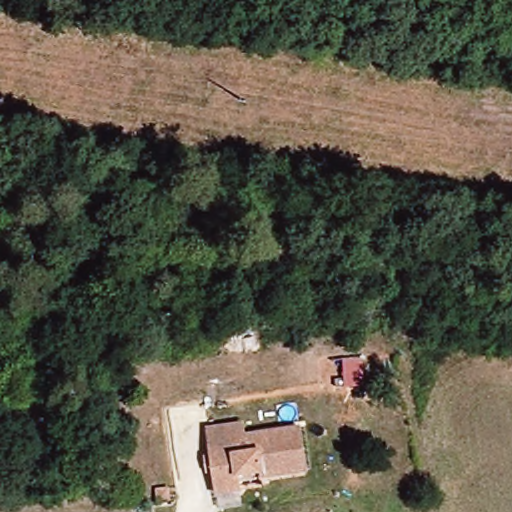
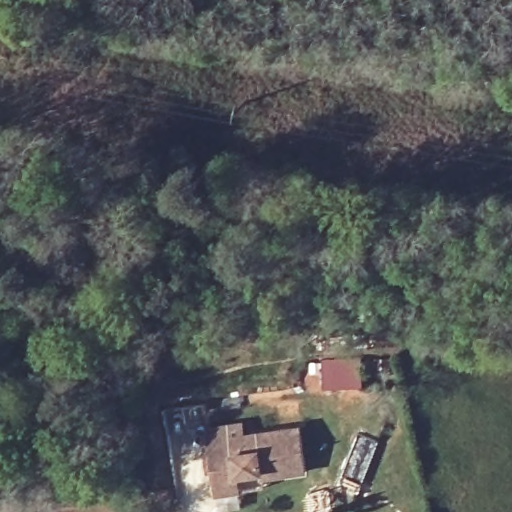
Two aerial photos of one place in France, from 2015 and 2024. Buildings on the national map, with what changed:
unchanged [(240,493),(217,498),(215,474),(207,474),(205,459),(212,459),(208,429),(242,426),(242,439),(300,430),(306,474),(263,480),(265,489),(240,493)]

